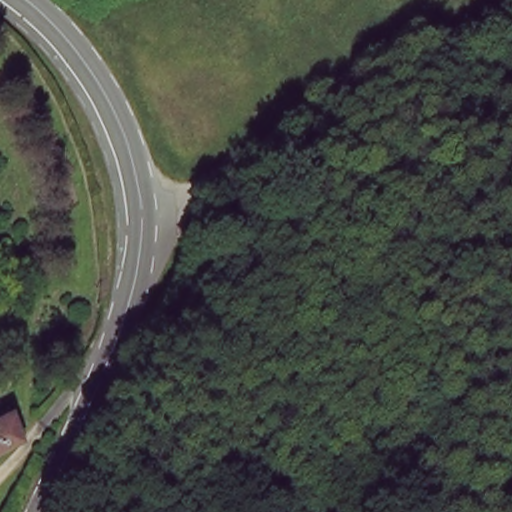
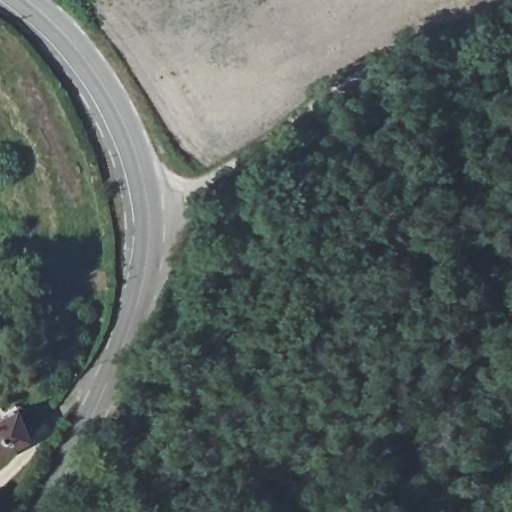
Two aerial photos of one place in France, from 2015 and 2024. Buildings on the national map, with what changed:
unchanged [(13,416),(22,439),(12,444),(0,451),(0,413),(10,408),(13,416)]

